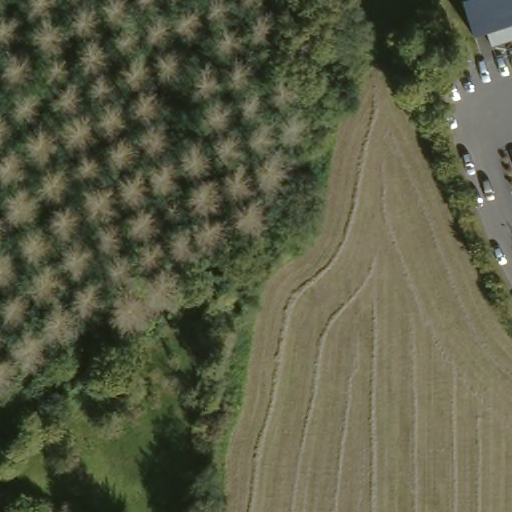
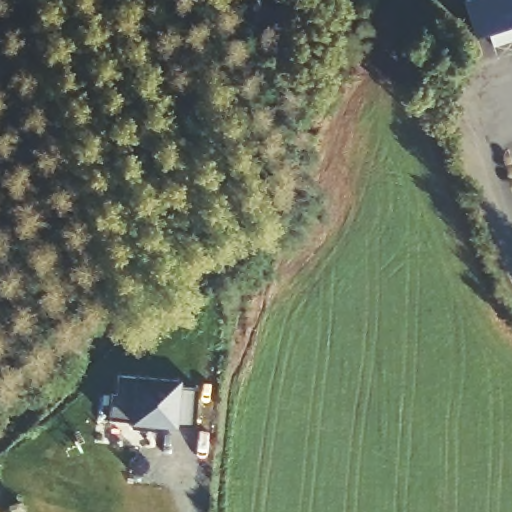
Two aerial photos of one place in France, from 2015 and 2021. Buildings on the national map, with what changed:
unchanged [(487,32),(473,35),(464,2),(470,0),(512,0),(512,40),(493,45),(487,32)]
new [(110,394),(116,395),(118,375),(136,378),(178,380),(177,387),(197,389),(195,425),(156,423),(155,430),(132,429),(132,421),(109,420),(110,394)]

